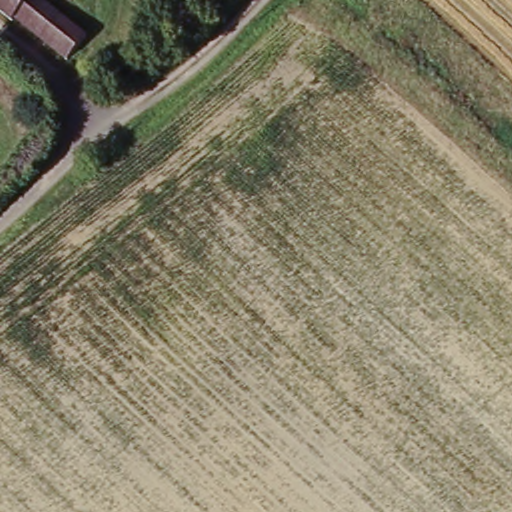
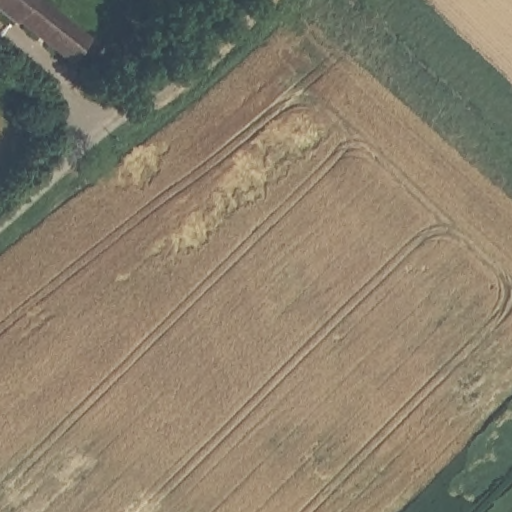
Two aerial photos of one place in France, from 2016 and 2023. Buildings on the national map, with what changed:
unchanged [(19,20),(16,22),(0,9),(0,0),(37,0),(89,45),(77,62),(72,65),(19,20)]

